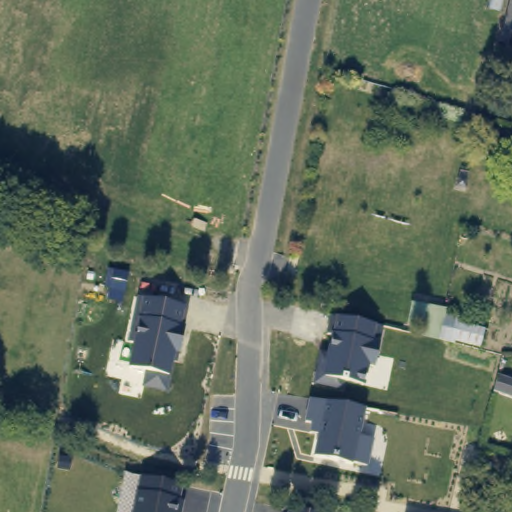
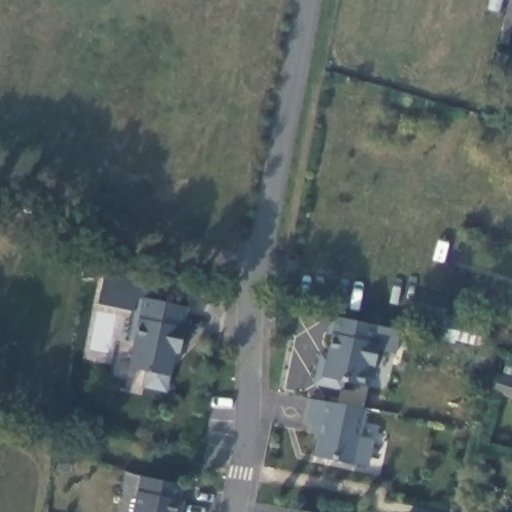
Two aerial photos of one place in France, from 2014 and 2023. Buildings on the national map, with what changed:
unchanged [(510,0),(512,0),(512,23),(506,22),(510,0)]
unchanged [(144,387),(147,371),(130,367),(136,342),(127,341),(137,296),(146,298),(184,307),(181,326),(187,328),(182,352),(174,351),(170,377),(167,392),(144,387)]
unchanged [(313,384),(320,353),(328,355),(333,335),(327,333),(328,315),(374,324),(371,342),(378,344),(374,367),(367,365),(362,385),(344,381),(342,391),(313,384)]
unchanged [(481,331),(478,346),(450,341),(452,326),(481,331)]
unchanged [(512,379),(512,400),(510,399),(495,395),(499,377),(512,379)]
unchanged [(309,398),(367,408),(360,437),(374,440),(370,466),(313,456),(317,433),(309,432),(311,422),(306,422),(309,398)]
unchanged [(182,485),(177,512),(134,512),(142,477),(182,485)]
unchanged [(317,512),(290,512),(291,507),(317,512)]

